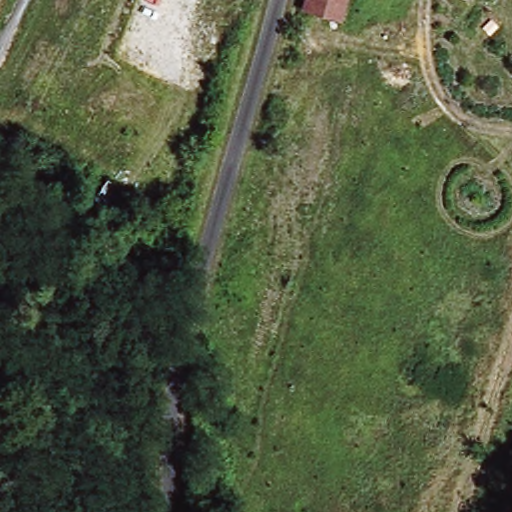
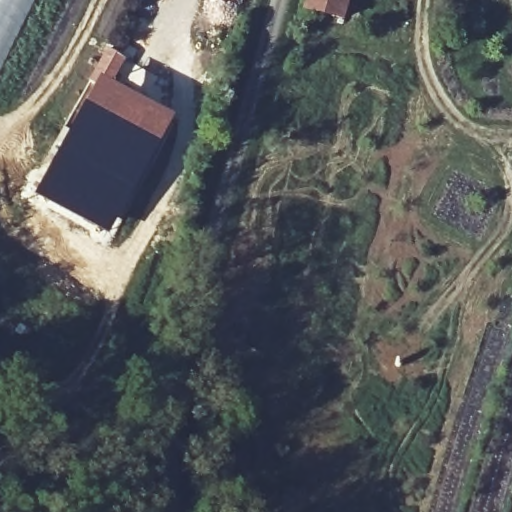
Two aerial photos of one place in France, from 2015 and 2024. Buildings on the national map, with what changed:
new [(34,0),(0,70),(0,0),(34,0)]
unchanged [(308,6),(309,0),(350,0),(346,16),(308,6)]
new [(119,212),(126,215),(122,224),(38,176),(65,125),(72,129),(97,85),(168,124),(119,212)]

